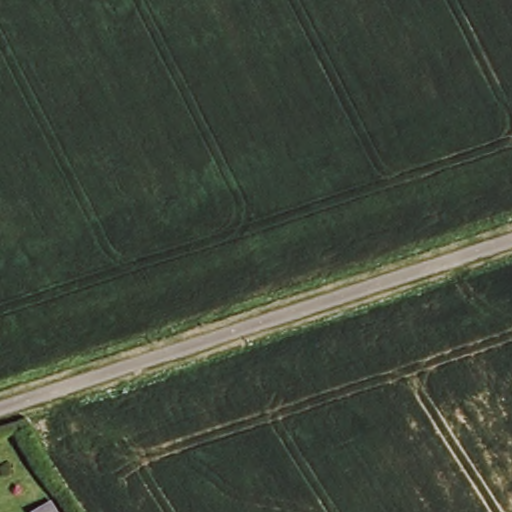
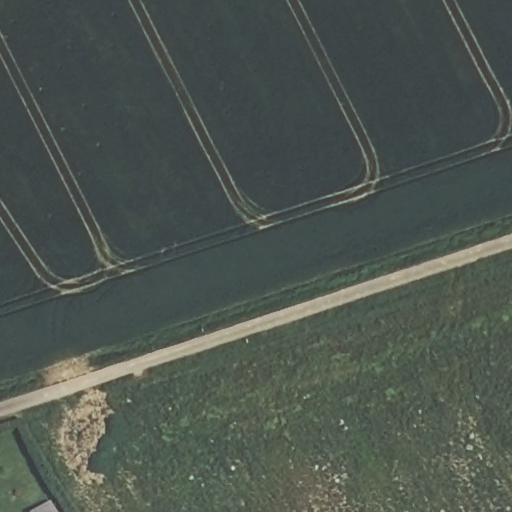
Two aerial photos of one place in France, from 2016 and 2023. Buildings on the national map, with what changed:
unchanged [(50,503),(55,512),(33,512),(50,503)]

